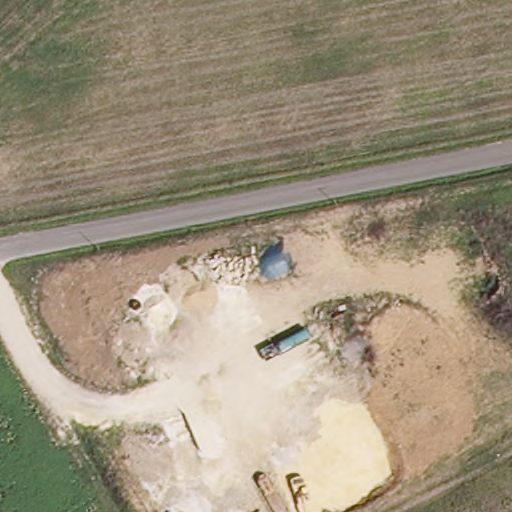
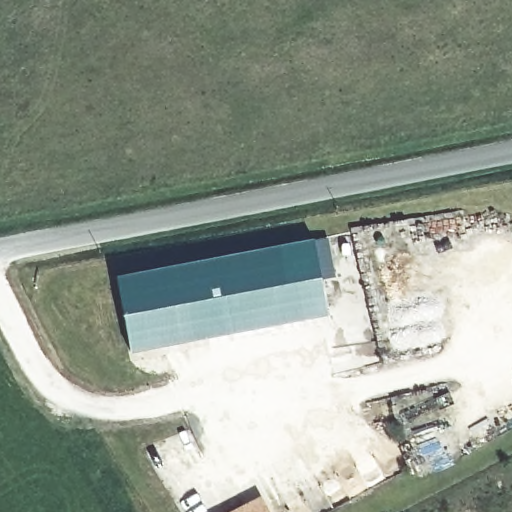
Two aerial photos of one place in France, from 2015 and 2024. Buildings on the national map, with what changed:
new [(313,242),(325,310),(128,348),(117,281),(313,242)]
new [(259,498),(267,512),(233,512),(259,498)]

